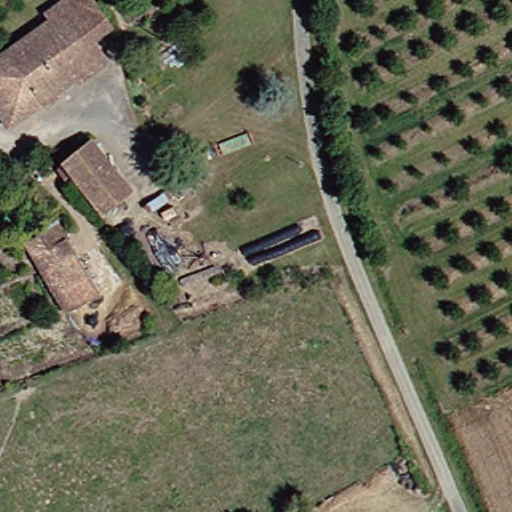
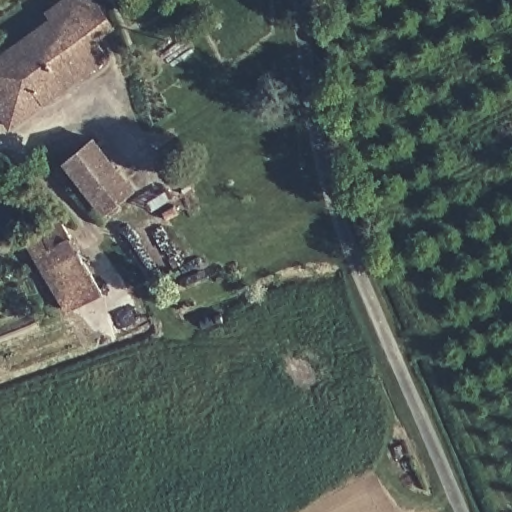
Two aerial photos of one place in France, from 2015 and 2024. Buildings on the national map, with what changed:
unchanged [(104,31),(89,43),(67,58),(46,31),(51,28),(39,9),(52,0),(84,0),(104,31)]
unchanged [(0,126),(0,52),(35,31),(29,16),(39,9),(51,28),(46,31),(67,58),(89,43),(99,62),(68,83),(37,105),(2,128),(0,126)]
unchanged [(57,166),(85,146),(121,194),(94,216),(57,166)]
unchanged [(64,312),(42,283),(48,278),(37,267),(52,256),(60,268),(68,278),(82,298),(64,312)]

